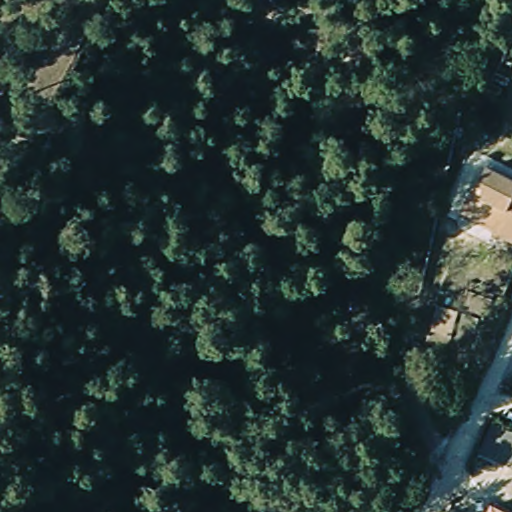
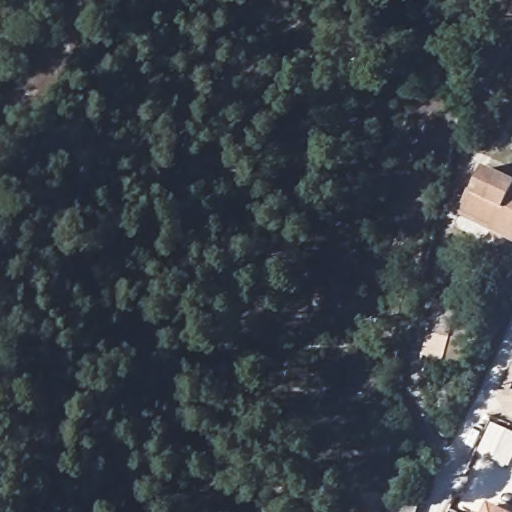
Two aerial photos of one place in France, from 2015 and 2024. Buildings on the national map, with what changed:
unchanged [(512,185),(512,243),(492,234),(494,230),(459,214),(469,194),(473,195),(484,172),(512,185)]
unchanged [(428,335),(439,310),(457,315),(450,341),(428,335)]
unchanged [(480,456),(494,427),(512,436),(512,459),(508,468),(480,456)]
unchanged [(508,512),(491,512),(494,506),(508,512)]

